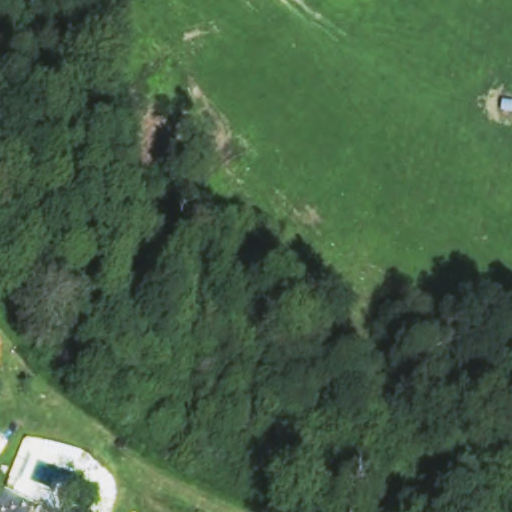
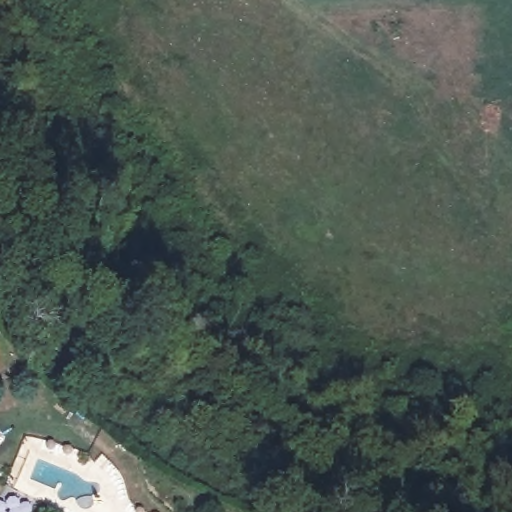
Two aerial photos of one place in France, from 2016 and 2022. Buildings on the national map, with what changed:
[]

